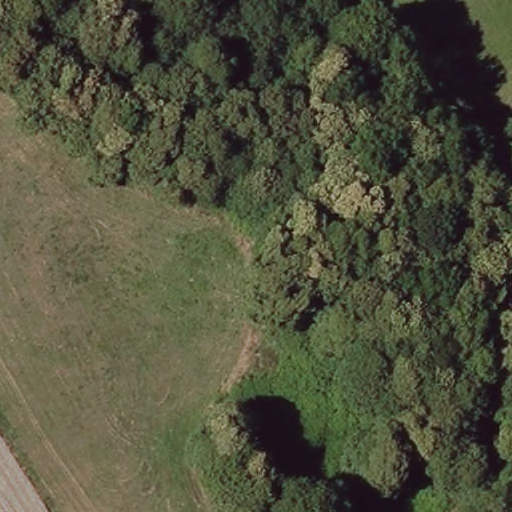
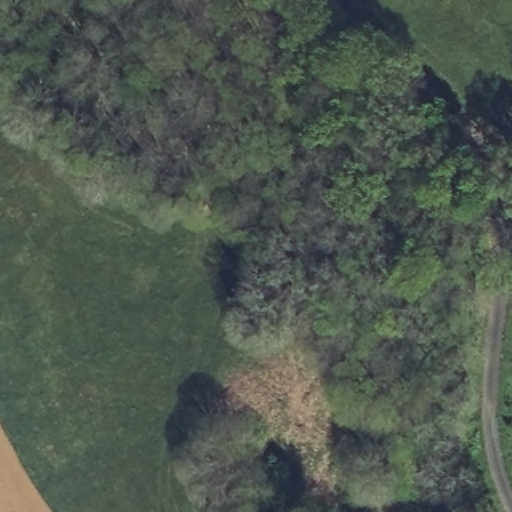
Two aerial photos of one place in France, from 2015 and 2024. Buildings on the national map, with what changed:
[]

